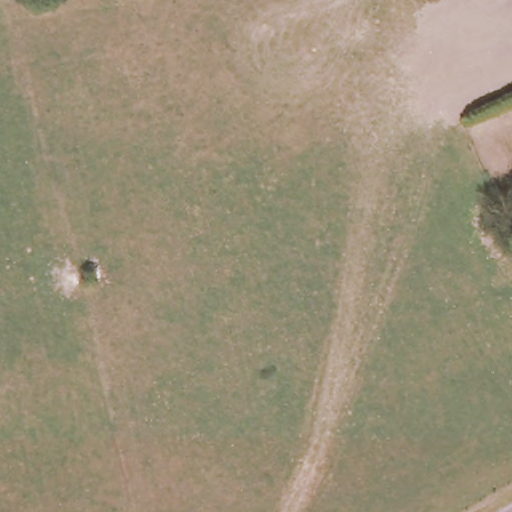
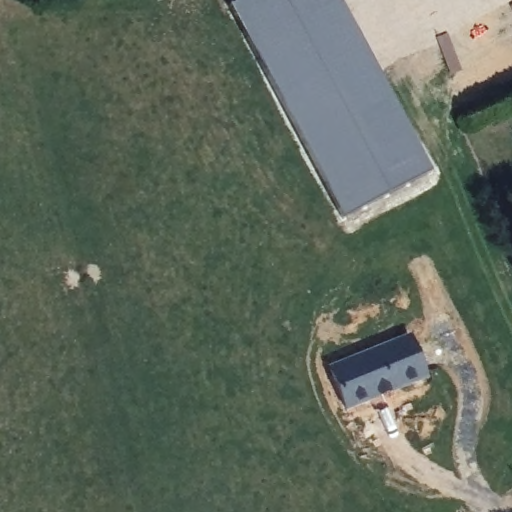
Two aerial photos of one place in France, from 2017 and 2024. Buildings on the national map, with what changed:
new [(342,220),(228,6),(240,0),(339,0),(433,173),(342,220)]
new [(428,377),(346,411),(328,367),(409,334),(428,377)]

